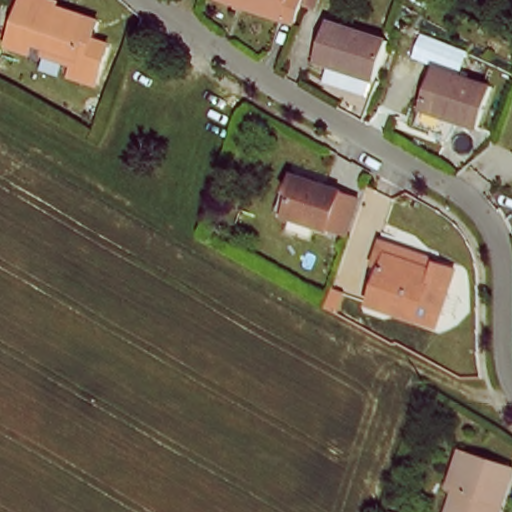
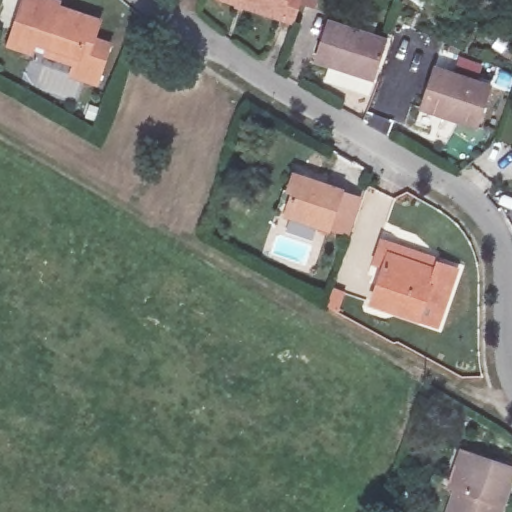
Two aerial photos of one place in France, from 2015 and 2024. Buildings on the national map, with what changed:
unchanged [(30,0),(42,0),(70,9),(69,15),(100,25),(89,62),(97,37),(113,43),(100,87),(71,78),(73,70),(65,66),(13,47),(30,0)]
unchanged [(237,0),(303,0),(297,22),(237,0)]
unchanged [(314,62),(327,19),(391,39),(378,83),(314,62)]
unchanged [(482,129),(423,112),(433,72),(492,87),(482,129)]
unchanged [(329,236),(291,220),(298,201),(286,196),(296,171),(346,190),(329,236)]
unchanged [(440,337),(374,314),(389,267),(378,262),(384,242),(434,259),(460,268),(440,337)]
unchanged [(496,512),(443,512),(469,447),(512,463),(512,474),(496,512)]

